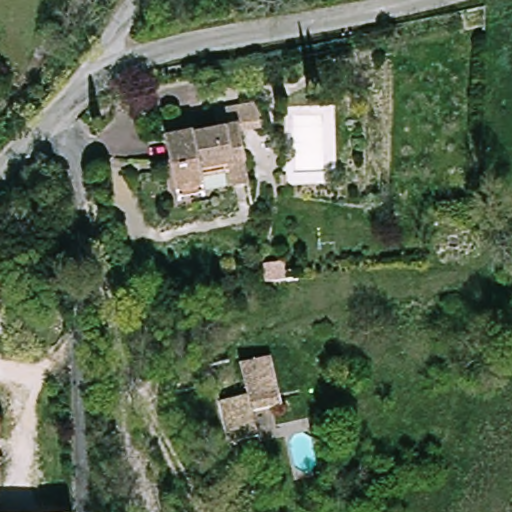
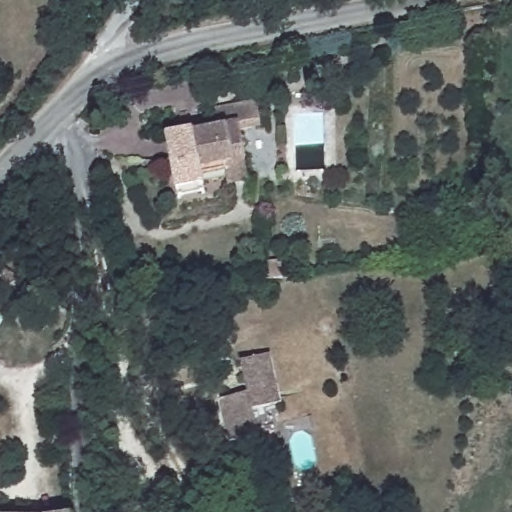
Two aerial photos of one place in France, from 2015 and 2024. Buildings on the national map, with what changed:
unchanged [(228,184),(226,171),(205,175),(208,187),(183,191),(172,133),(217,125),(214,109),(250,102),(253,118),(235,121),(242,155),(247,180),(228,184)]
unchanged [(287,402),(260,411),(266,436),(237,445),(224,404),(251,395),(241,364),(271,354),(287,402)]
unchanged [(1,420),(0,463),(0,420),(1,420)]
unchanged [(1,500),(1,512),(0,512),(0,500),(1,500)]

